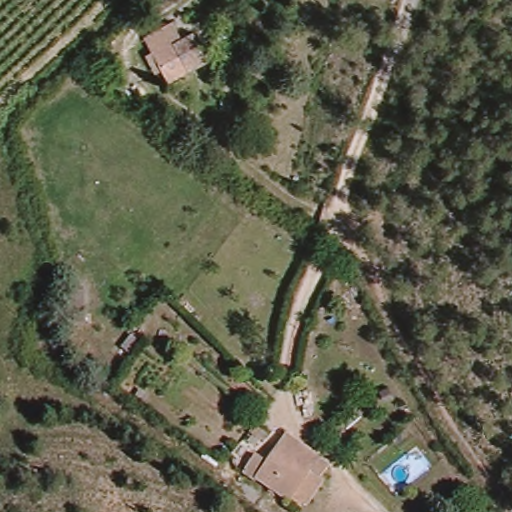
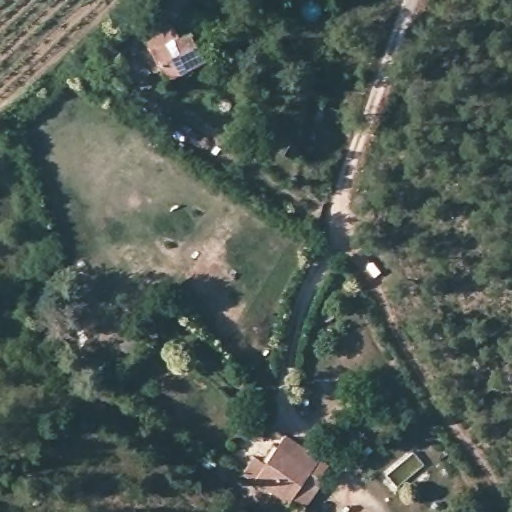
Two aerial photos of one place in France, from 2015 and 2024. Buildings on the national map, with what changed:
unchanged [(172,88),(140,39),(169,20),(193,65),(172,88)]
unchanged [(95,275),(97,315),(79,315),(78,275),(95,275)]
unchanged [(312,508),(300,499),(296,505),(265,481),(263,484),(247,472),(261,455),(271,462),(283,445),(292,434),(335,468),(327,480),(331,483),(312,508)]

